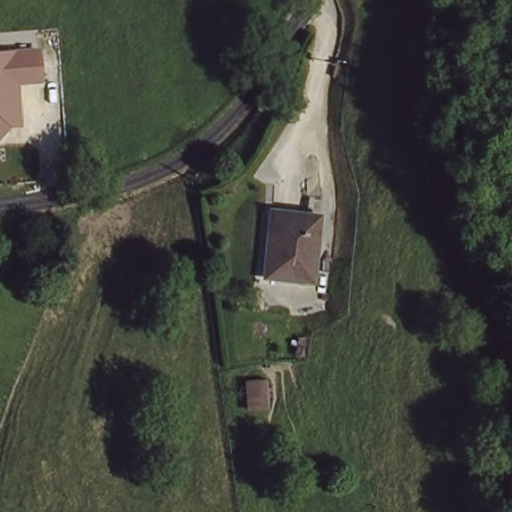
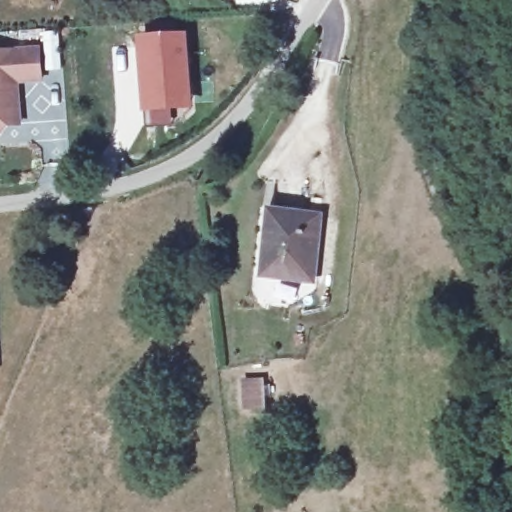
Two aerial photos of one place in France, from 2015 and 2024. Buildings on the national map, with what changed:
new [(187,37),(191,110),(141,113),(139,40),(187,37)]
unchanged [(20,81),(21,119),(3,120),(5,136),(0,136),(0,50),(35,49),(36,80),(20,81)]
unchanged [(310,279),(261,274),(268,211),(317,214),(310,279)]

